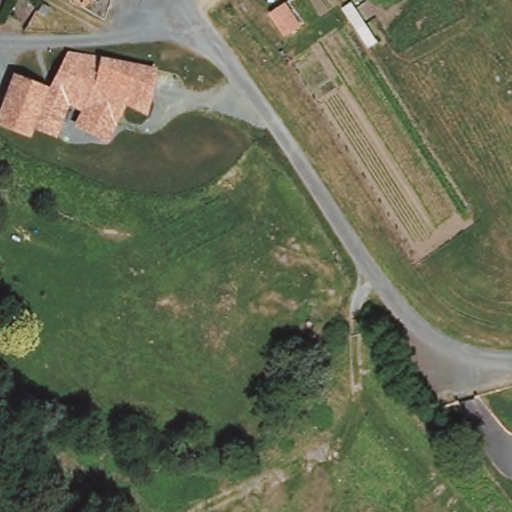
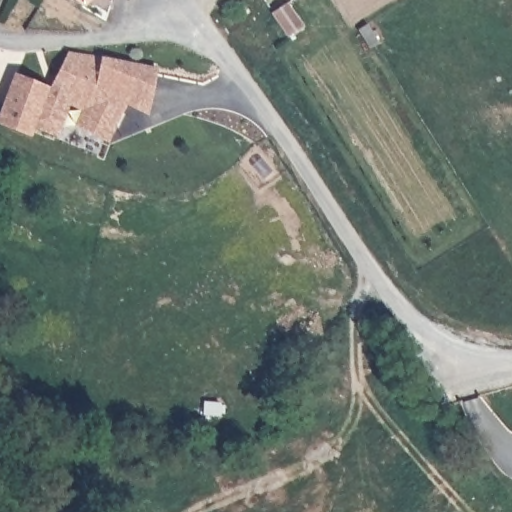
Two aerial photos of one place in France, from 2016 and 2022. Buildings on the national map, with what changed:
unchanged [(73,0),(86,0),(81,5),(73,0)]
unchanged [(142,69),(145,70),(149,71),(145,90),(140,115),(125,112),(119,110),(102,139),(100,144),(93,155),(65,141),(73,125),(79,113),(82,106),(85,103),(94,60),(125,66),(128,54),(145,57),(142,69)]
unchanged [(94,60),(85,103),(82,106),(79,113),(45,94),(65,55),(94,60)]
unchanged [(21,136),(0,127),(0,105),(10,78),(39,90),(21,136)]

